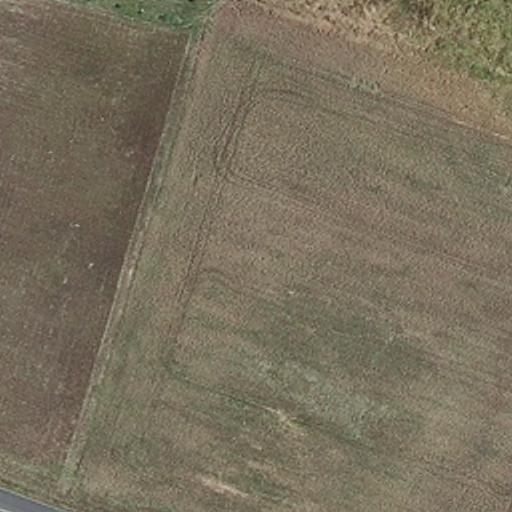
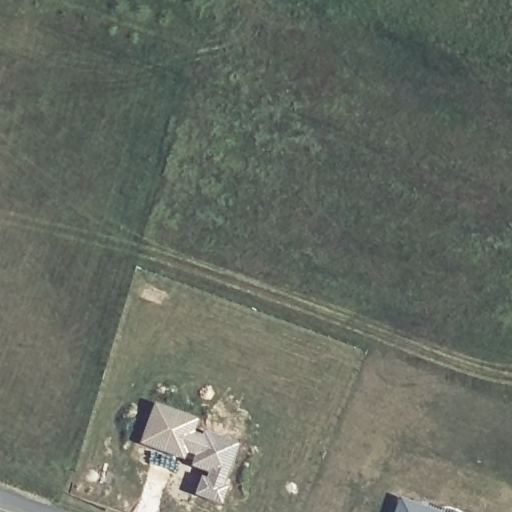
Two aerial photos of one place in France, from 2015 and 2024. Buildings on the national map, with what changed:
new [(154,403),(200,420),(197,427),(238,443),(220,506),(193,496),(202,473),(189,467),(191,463),(138,445),(154,403)]
new [(399,496),(443,511),(444,507),(460,512),(393,512),(399,496)]

